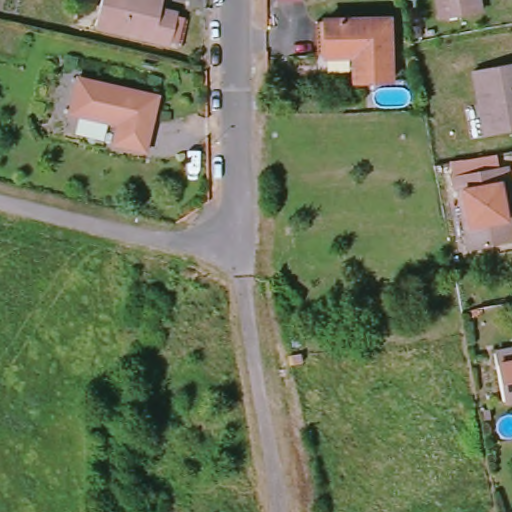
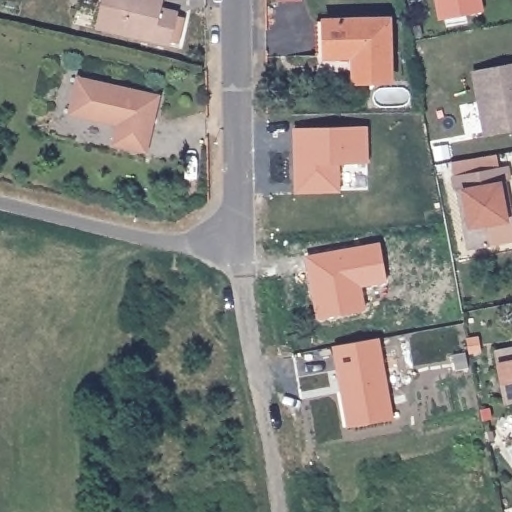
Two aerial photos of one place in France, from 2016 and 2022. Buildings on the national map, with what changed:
unchanged [(167,0),(164,11),(181,15),(175,49),(97,31),(104,0),(167,0)]
new [(303,0),(303,1),(278,1),(278,0),(303,0)]
unchanged [(439,26),(433,0),(473,0),(477,19),(439,26)]
unchanged [(321,16),(389,15),(391,78),(353,78),(351,52),(321,52),(321,16)]
unchanged [(512,70),(512,134),(479,139),(470,76),(512,70)]
unchanged [(156,97),(142,154),(108,146),(112,127),(64,116),(73,76),(156,97)]
new [(296,193),(296,130),(368,129),(368,167),(339,167),(339,193),(296,193)]
unchanged [(499,161),(503,177),(498,178),(510,240),(464,247),(450,171),(499,161)]
new [(376,243),(383,280),(356,285),(361,310),(314,318),(303,257),(376,243)]
new [(374,337),(389,418),(346,427),(331,346),(374,337)]
unchanged [(491,400),(483,351),(512,347),(512,397),(491,400)]

